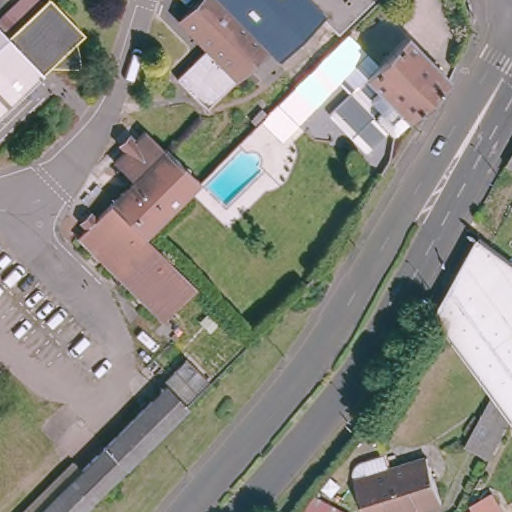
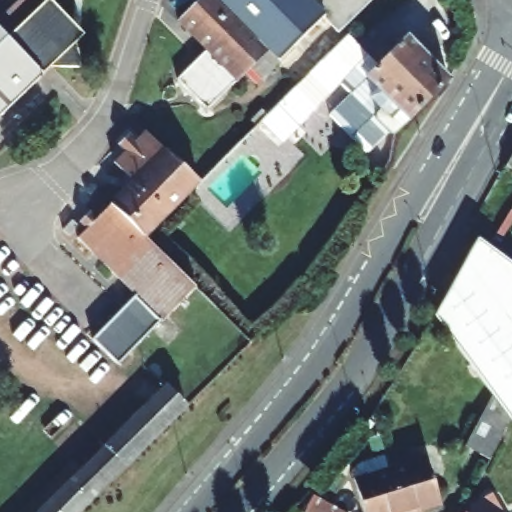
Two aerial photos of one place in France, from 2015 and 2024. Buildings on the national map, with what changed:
unchanged [(18,0),(43,0),(44,1),(45,0),(55,0),(68,15),(64,19),(68,24),(73,30),(76,36),(78,41),(80,47),(82,53),(83,59),(83,64),(56,62),(0,118),(0,17),(18,0)]
unchanged [(323,9),(251,80),(245,73),(208,111),(179,81),(206,53),(177,24),(202,0),(358,0),(336,22),(323,9)]
unchanged [(265,122),(281,106),(301,86),(325,62),(341,46),(348,39),(351,35),(383,67),(411,39),(453,82),(398,136),(393,134),(391,132),(369,153),(333,116),(354,95),(343,84),(301,126),(285,142),(265,122)]
unchanged [(155,229),(145,239),(194,288),(163,320),(79,236),(132,183),(113,165),(144,134),(163,152),(166,151),(199,184),(155,229)]
unchanged [(512,330),(509,332),(469,367),(429,312),(479,233),(481,235),(512,262),(512,330)]
new [(118,363),(93,338),(136,292),(163,320),(118,363)]
unchanged [(509,332),(512,330),(512,426),(469,367),(509,332)]
unchanged [(169,387),(166,383),(190,358),(211,380),(186,403),(169,387)]
unchanged [(148,407),(169,387),(186,403),(189,407),(84,512),(43,512),(109,446),(148,407)]
unchanged [(479,474),(454,462),(484,401),(484,400),(485,401),(487,402),(502,422),(503,423),(479,474)]
unchanged [(406,510),(399,493),(396,485),(391,471),(426,458),(443,504),(423,512),(406,512),(406,510)]
unchanged [(391,471),(396,485),(399,493),(406,510),(406,512),(366,512),(357,483),(356,481),(354,481),(354,478),(354,476),(355,473),(356,470),(359,467),(362,465),(365,462),(366,462),(368,466),(387,460),(391,471)]
unchanged [(318,496),(353,512),(310,512),(318,496)]
unchanged [(501,512),(472,512),(494,500),(501,512)]

